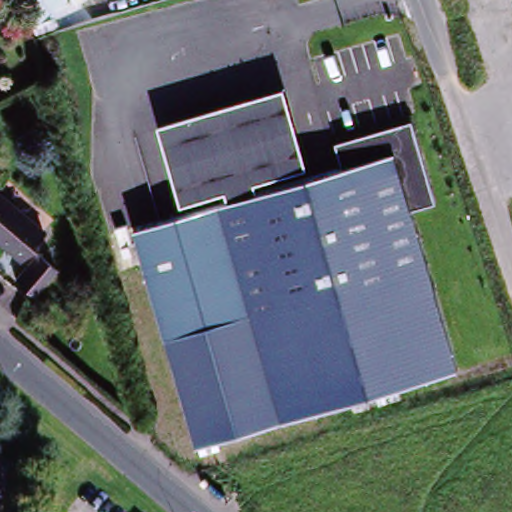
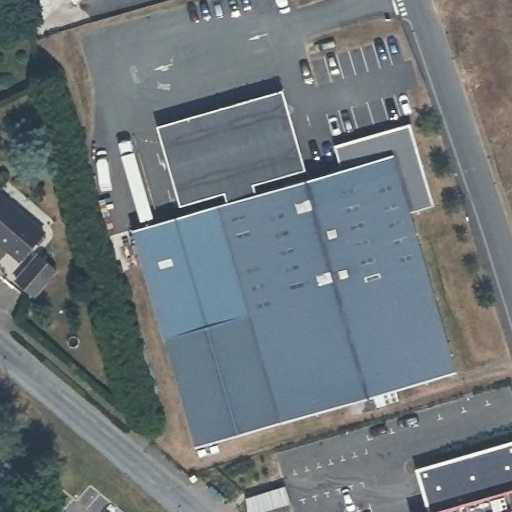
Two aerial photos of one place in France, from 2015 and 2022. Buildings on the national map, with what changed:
unchanged [(69,0),(77,0),(72,4),(69,0)]
unchanged [(306,168),(254,184),(257,194),(227,203),(225,194),(180,208),(158,127),(284,91),(306,168)]
unchanged [(409,213),(455,373),(366,398),(370,412),(352,417),(348,404),(196,446),(133,229),(152,224),(148,211),(166,205),(170,219),(342,170),(335,146),(409,124),(432,205),(409,213)]
unchanged [(0,248),(0,200),(44,239),(24,261),(20,265),(0,248)]
unchanged [(37,259),(56,275),(34,301),(15,285),(37,259)]
new [(419,473),(512,444),(512,512),(431,512),(419,473)]

